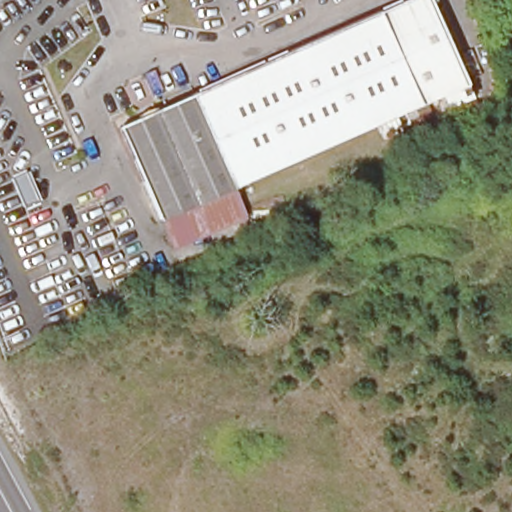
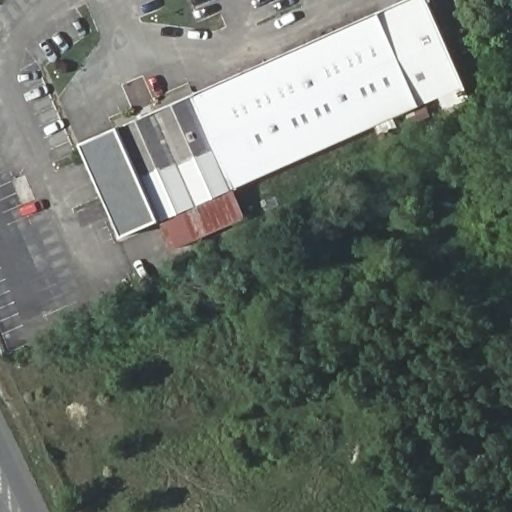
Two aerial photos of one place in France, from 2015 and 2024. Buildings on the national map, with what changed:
unchanged [(426,0),(471,99),(445,108),(439,96),(393,116),(400,130),(380,138),(373,126),(233,187),(245,218),(171,252),(159,223),(158,221),(116,128),(401,0),(426,0)]
new [(116,128),(158,221),(122,237),(81,144),(116,128)]

